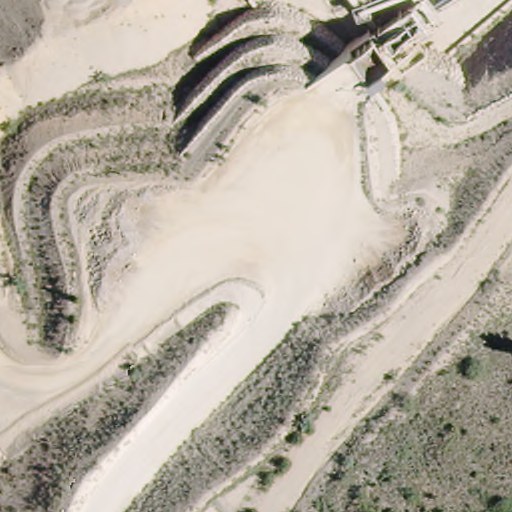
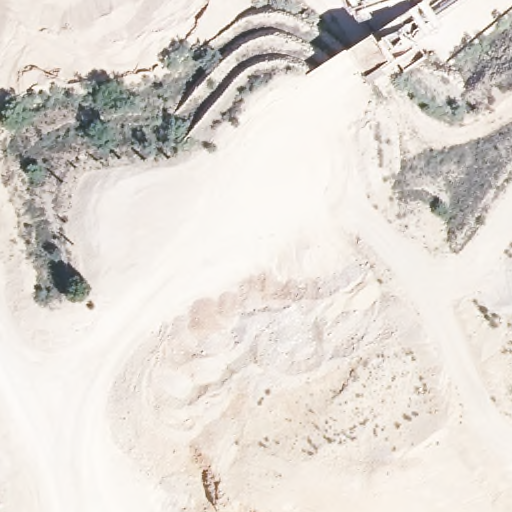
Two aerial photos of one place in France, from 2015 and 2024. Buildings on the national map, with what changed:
unchanged [(423,1),(440,31),(419,44),(427,56),(373,90),(349,47),(423,1)]

